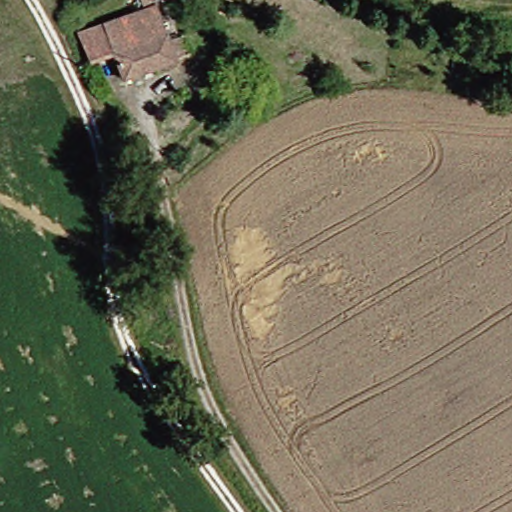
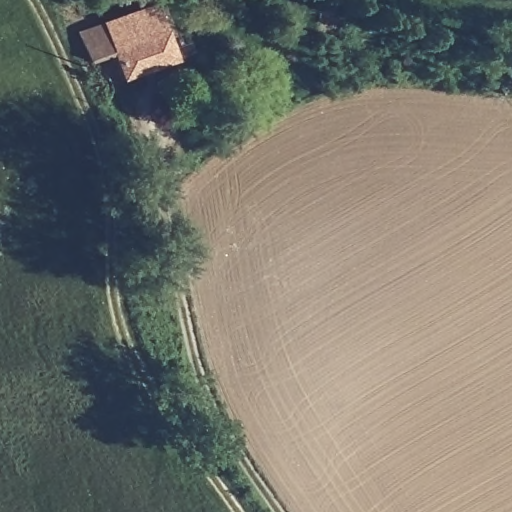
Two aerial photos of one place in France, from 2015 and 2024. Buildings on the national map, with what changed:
unchanged [(77,36),(137,11),(141,18),(158,10),(180,63),(122,86),(112,61),(92,69),(77,36)]

